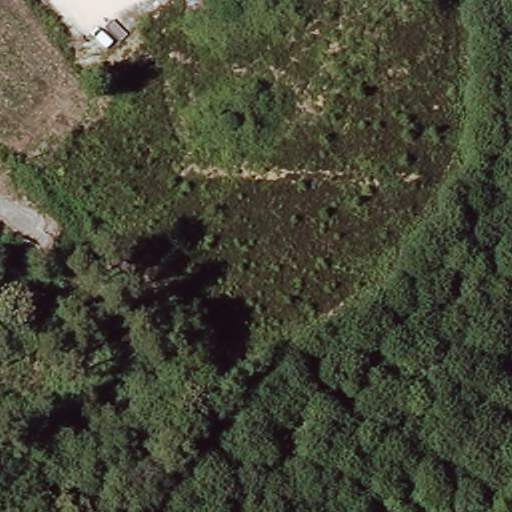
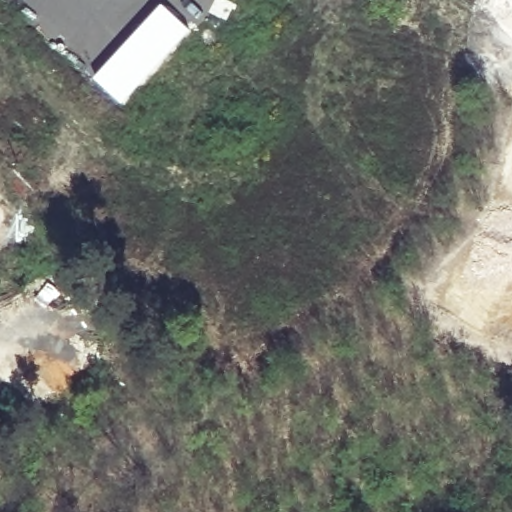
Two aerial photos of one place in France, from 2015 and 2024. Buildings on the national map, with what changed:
new [(233,0),(237,2),(227,22),(207,12),(213,0),(233,0)]
new [(164,1),(194,32),(123,106),(93,77),(164,1)]

